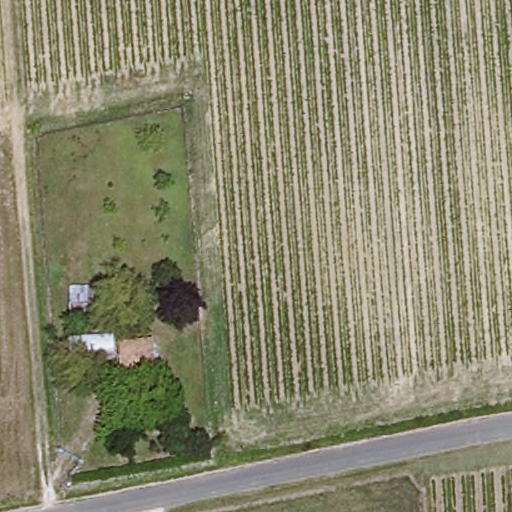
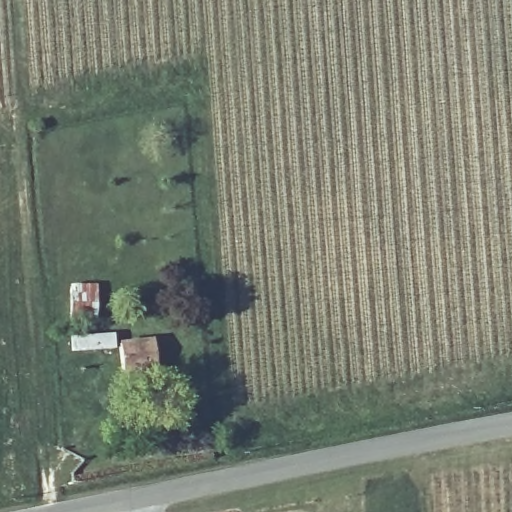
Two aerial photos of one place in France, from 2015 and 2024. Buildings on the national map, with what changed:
unchanged [(74,284),(99,285),(97,320),(72,317),(74,284)]
unchanged [(72,336),(114,336),(113,351),(72,351),(72,336)]
unchanged [(152,340),(154,371),(118,373),(117,342),(152,340)]

